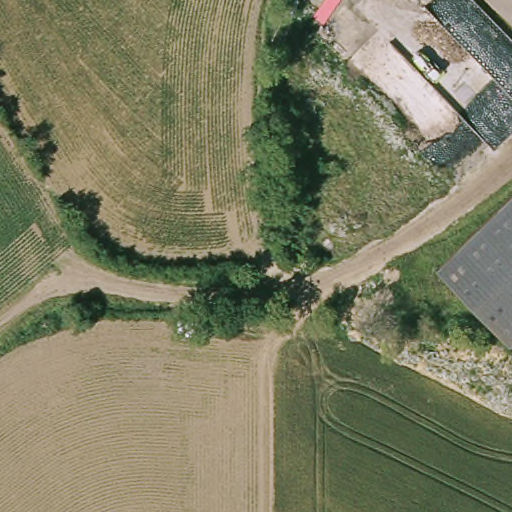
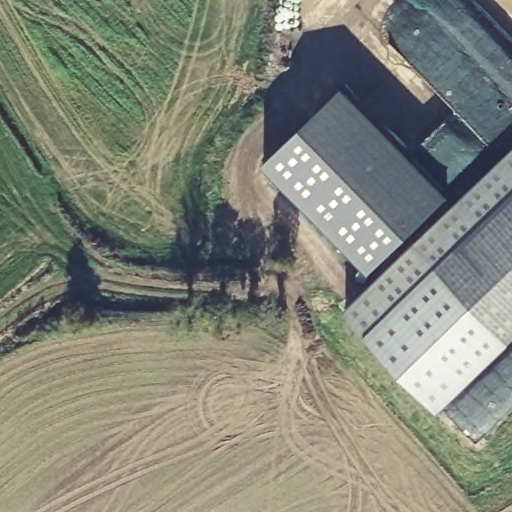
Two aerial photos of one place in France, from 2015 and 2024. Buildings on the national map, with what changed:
new [(347,90),(441,207),(356,275),(262,158),(347,90)]
new [(450,401),(351,307),(512,138),(512,336),(450,401)]

